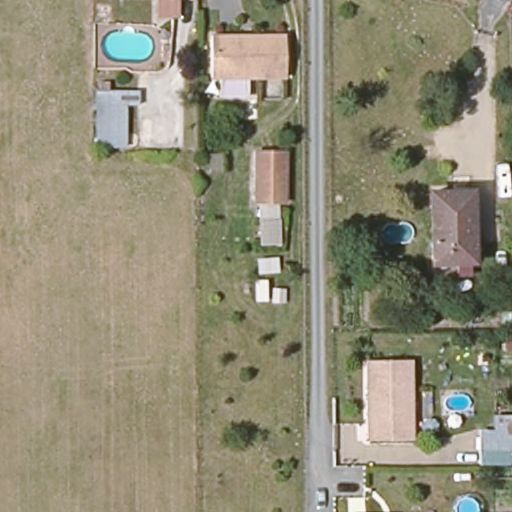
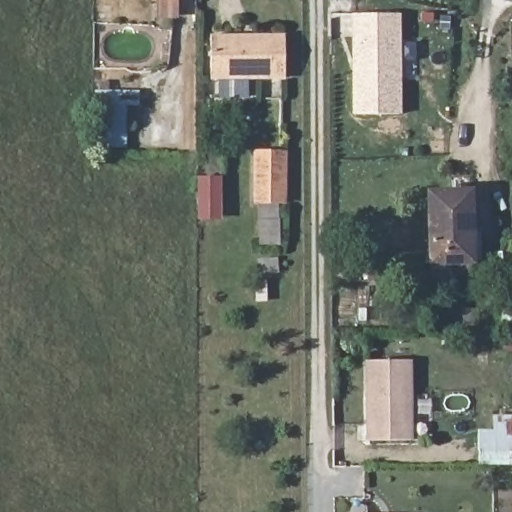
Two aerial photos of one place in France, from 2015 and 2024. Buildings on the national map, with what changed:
new [(398,14),(398,114),(353,114),(353,79),(358,79),(358,36),(353,36),(353,14),(398,14)]
unchanged [(283,32),(284,75),(214,75),(214,32),(283,32)]
new [(126,146),(96,146),(96,90),(139,92),(138,106),(129,105),(126,146)]
unchanged [(278,160),(279,209),(250,210),(249,161),(278,160)]
unchanged [(427,257),(428,240),(430,189),(469,190),(470,190),(470,258),(469,258),(427,257)]
unchanged [(369,436),(368,387),(367,360),(411,360),(412,394),(413,437),(412,437),(369,436)]

